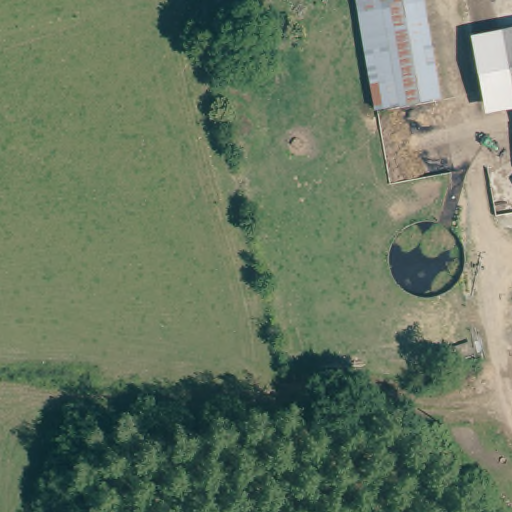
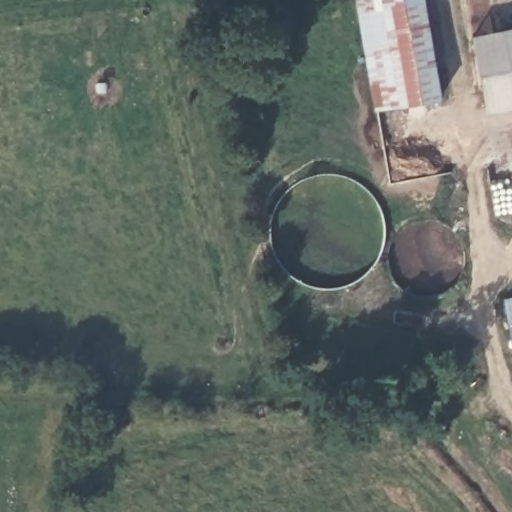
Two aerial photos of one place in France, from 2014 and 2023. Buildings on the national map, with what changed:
unchanged [(425,7),(443,98),(379,111),(360,20),(356,0),(423,0),(425,7)]
unchanged [(483,118),(470,38),(512,29),(512,113),(483,118)]
unchanged [(512,307),(512,338),(507,308),(512,307)]

